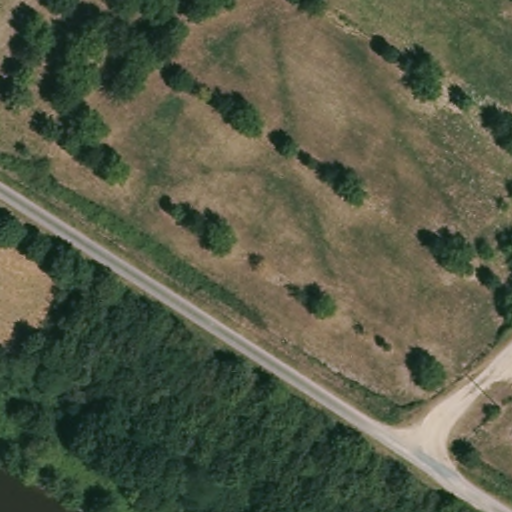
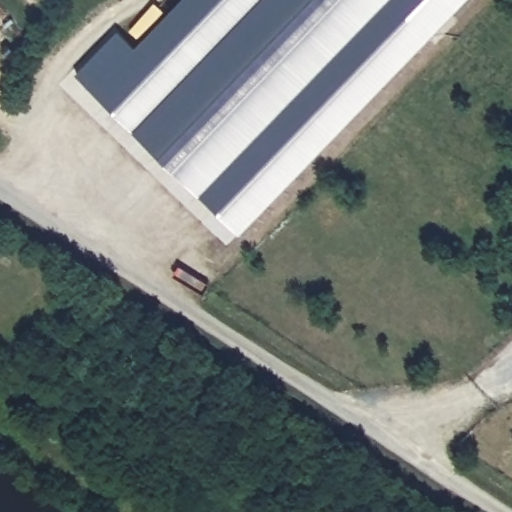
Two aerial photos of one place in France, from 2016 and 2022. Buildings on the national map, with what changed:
new [(77,72),(119,32),(137,47),(182,0),(468,0),(242,234),(77,72)]

